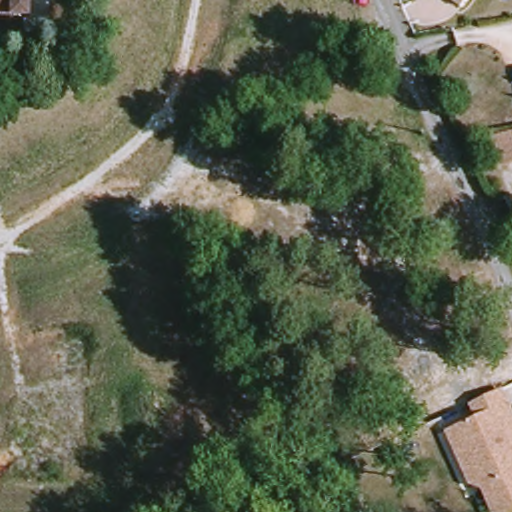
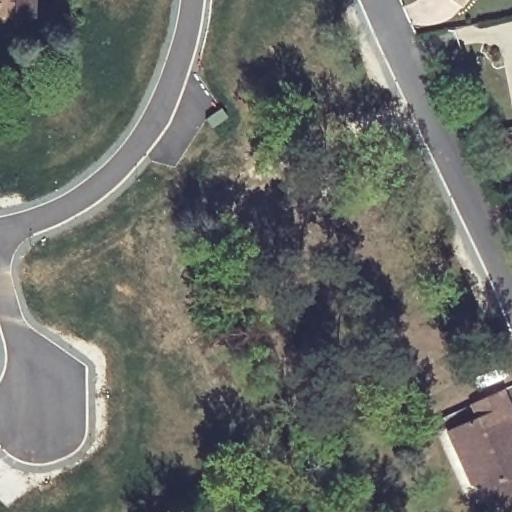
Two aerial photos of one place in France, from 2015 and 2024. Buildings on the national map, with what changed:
unchanged [(0,14),(0,0),(27,0),(26,15),(0,14)]
unchanged [(466,12),(449,0),(475,0),(466,12)]
unchanged [(512,133),(512,136),(511,133),(512,133)]
unchanged [(468,403),(504,387),(512,404),(512,512),(493,512),(482,488),(471,493),(447,431),(475,419),(468,403)]

